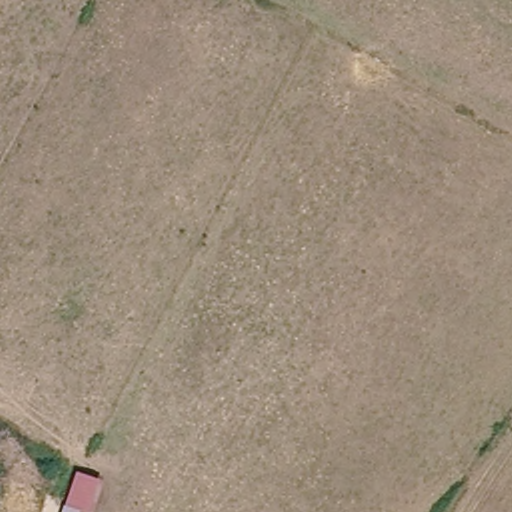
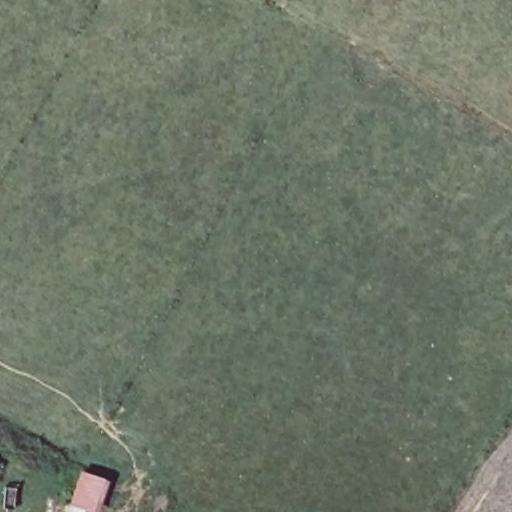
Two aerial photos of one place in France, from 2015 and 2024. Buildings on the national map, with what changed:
unchanged [(94,512),(84,510),(83,512),(62,512),(76,470),(105,480),(94,512)]

